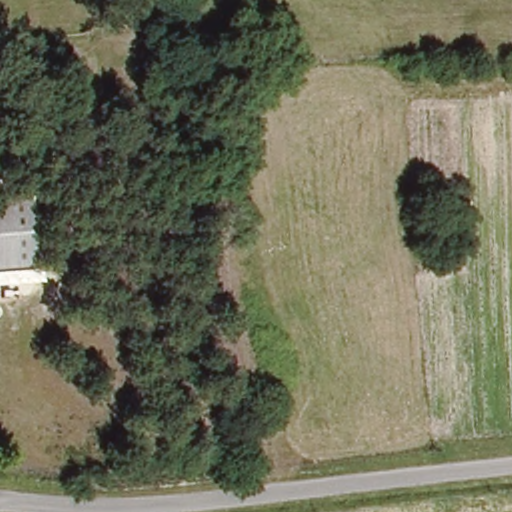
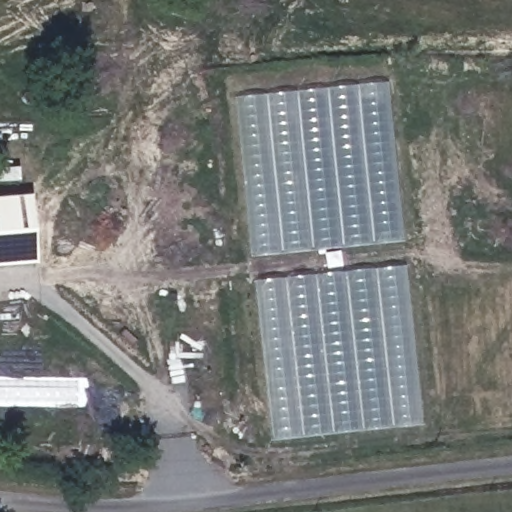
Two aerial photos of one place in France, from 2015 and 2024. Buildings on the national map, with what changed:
new [(248,257),(229,98),(382,82),(400,242),(248,257)]
unchanged [(0,268),(0,199),(29,197),(35,265),(0,268)]
new [(268,440),(250,281),(400,266),(420,425),(268,440)]

